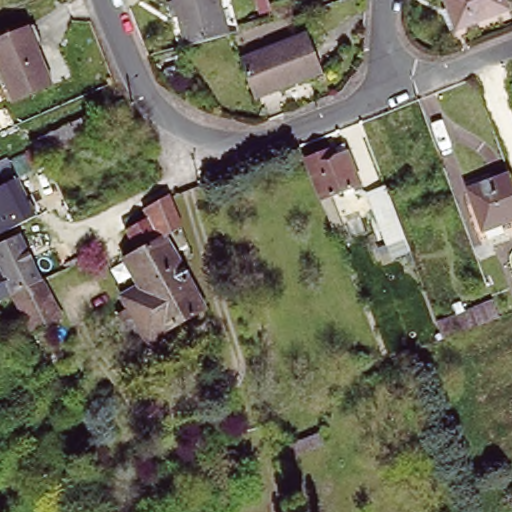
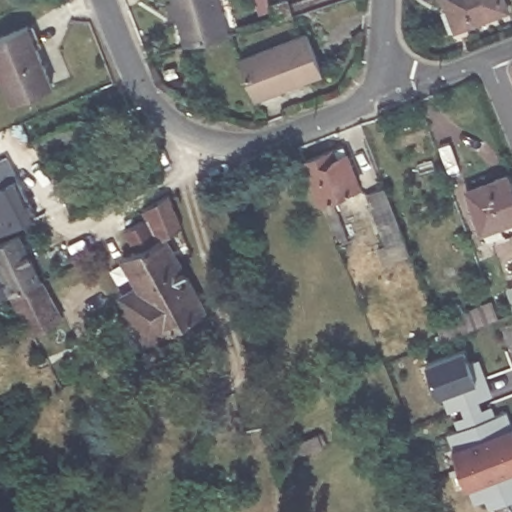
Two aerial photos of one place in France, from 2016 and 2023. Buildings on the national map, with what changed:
unchanged [(169,0),(219,0),(226,32),(185,42),(179,19),(178,12),(172,14),(169,0)]
unchanged [(451,4),(449,0),(507,0),(509,5),(458,24),(452,26),(445,6),(451,4)]
unchanged [(272,7),(288,2),(290,7),(293,20),(277,26),(274,12),(272,7)]
unchanged [(55,81),(17,97),(0,57),(0,37),(32,24),(55,81)]
unchanged [(249,91),(235,54),(302,29),(317,69),(275,85),(250,94),(249,91)]
demolished [(0,130),(0,108),(6,105),(14,125),(0,130)]
unchanged [(35,147),(34,148),(32,144),(97,112),(105,129),(47,158),(41,161),(35,147)]
unchanged [(329,145),(333,155),(344,151),(356,181),(317,196),(301,156),(329,145)]
unchanged [(34,148),(35,147),(41,161),(42,164),(45,162),(48,161),(62,154),(66,164),(39,177),(35,170),(19,177),(37,214),(0,232),(0,184),(5,182),(0,173),(0,165),(33,149),(34,148)]
unchanged [(477,222),(462,182),(506,166),(512,183),(512,222),(502,227),(501,224),(481,231),(477,222)]
unchanged [(406,247),(389,254),(365,190),(381,184),(406,247)]
unchanged [(171,197),(182,228),(167,237),(206,311),(166,332),(169,336),(149,347),(123,298),(140,289),(124,260),(137,252),(126,231),(147,219),(144,212),(170,196),(171,197)]
unchanged [(33,329),(0,263),(0,242),(19,232),(62,315),(33,329)]
unchanged [(447,341),(445,342),(439,326),(449,322),(493,304),(499,320),(447,341)]
new [(487,510),(485,502),(473,506),(467,488),(452,449),(446,433),(457,429),(451,411),(449,412),(442,396),(439,397),(425,362),(464,347),(471,362),(479,357),(493,395),(480,400),(482,408),(492,405),(497,415),(508,410),(512,423),(512,501),(487,510)]
unchanged [(56,474),(66,498),(51,504),(41,481),(56,474)]

